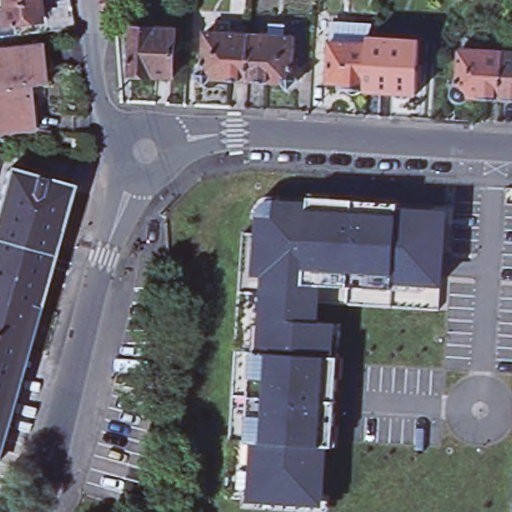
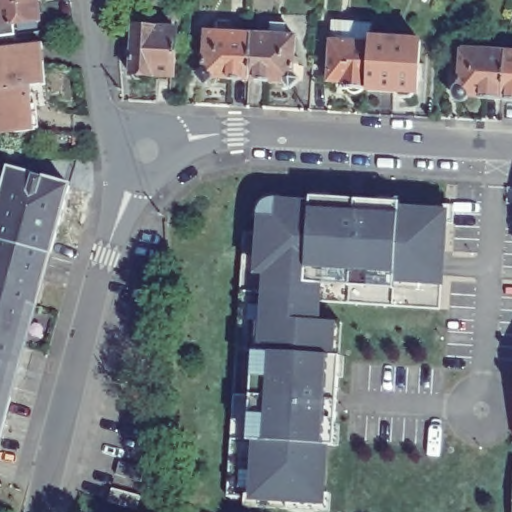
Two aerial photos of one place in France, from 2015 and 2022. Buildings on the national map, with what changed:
unchanged [(5,21),(3,5),(9,5),(9,1),(0,2),(0,0),(43,0),(45,16),(42,17),(5,21)]
unchanged [(43,29),(42,17),(45,16),(43,0),(77,0),(83,25),(43,29)]
unchanged [(421,44),(423,40),(419,39),(427,17),(434,20),(443,22),(436,44),(434,43),(433,47),(421,44)]
unchanged [(364,94),(359,94),(359,96),(358,99),(356,100),(353,101),(350,101),(348,100),(346,97),(346,96),(344,93),(338,93),(338,87),(326,86),(328,44),(329,25),(371,27),(368,37),(367,41),(364,94)]
unchanged [(179,29),(177,75),(154,74),(151,79),(139,78),(138,76),(137,75),(137,73),(134,72),(136,26),(179,29)]
unchanged [(218,71),(213,77),(204,68),(211,62),(213,26),(258,28),(256,74),(218,71)]
unchanged [(299,66),(306,73),(296,82),(291,76),(256,74),(258,28),(301,30),(299,66)]
unchanged [(417,44),(414,97),(412,97),(407,102),(397,101),(392,96),(364,94),(367,41),(417,44)]
unchanged [(44,84),(29,85),(33,130),(0,133),(0,48),(41,45),(44,84)]
unchanged [(503,104),(458,100),(462,54),(504,56),(503,104)]
unchanged [(512,57),(512,104),(503,104),(504,56),(507,56),(512,57)]
unchanged [(0,180),(0,151),(11,151),(3,181),(0,180)]
unchanged [(16,166),(77,185),(43,305),(0,294),(0,205),(5,206),(16,166)]
unchanged [(446,298),(324,291),(323,312),(340,313),(330,491),(234,486),(249,221),(269,222),(269,205),(269,203),(270,201),(271,200),(272,198),(273,197),(274,196),(276,195),(277,194),(279,194),(281,194),(282,194),(452,203),(446,298)]
unchanged [(19,388),(0,383),(0,294),(43,305),(19,388)]
unchanged [(0,383),(19,388),(0,455),(0,383)]

